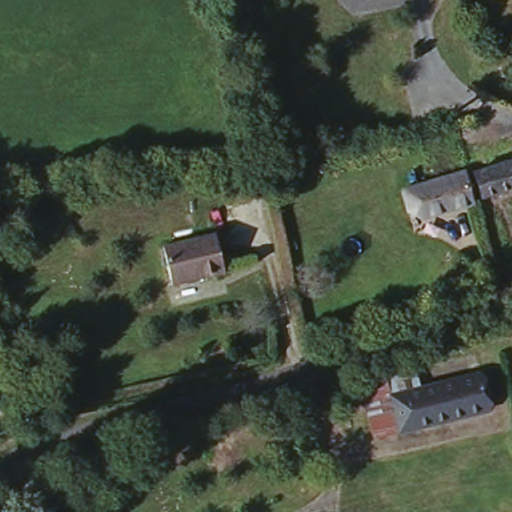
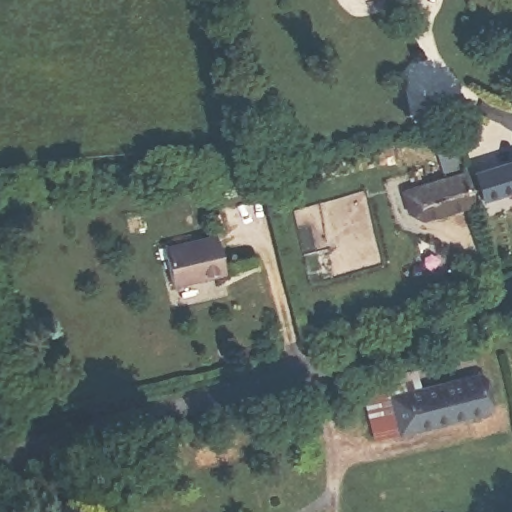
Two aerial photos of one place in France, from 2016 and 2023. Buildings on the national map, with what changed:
unchanged [(480,201),(473,175),(512,163),(512,191),(480,201)]
unchanged [(423,213),(417,200),(406,203),(402,190),(462,170),(471,199),(423,213)]
unchanged [(218,240),(224,278),(171,285),(166,246),(218,240)]
unchanged [(403,400),(480,375),(491,409),(413,433),(403,400)]
unchanged [(403,400),(413,433),(383,445),(369,391),(399,381),(403,400)]

